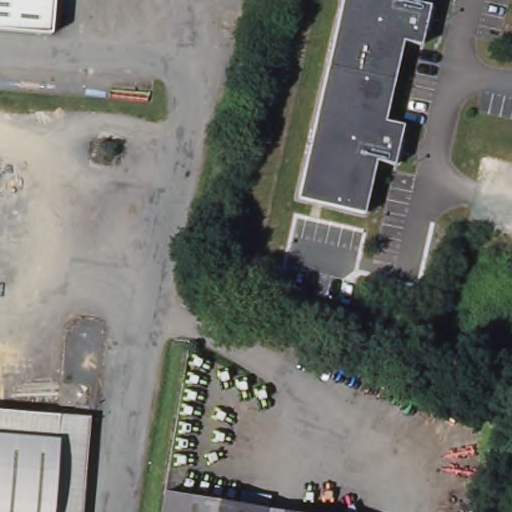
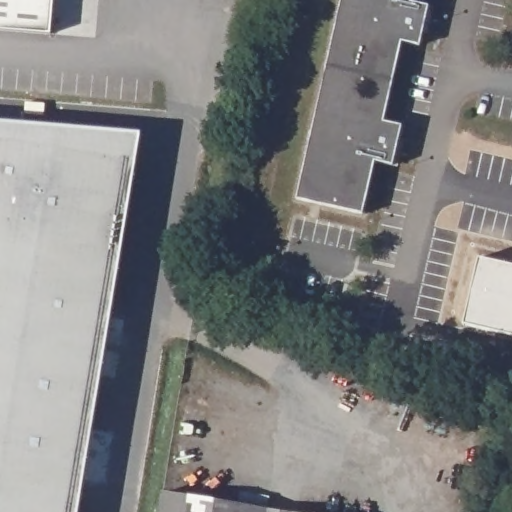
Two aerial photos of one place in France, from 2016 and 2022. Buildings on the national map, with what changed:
unchanged [(0,26),(0,0),(54,0),(51,30),(0,26)]
unchanged [(430,0),(436,2),(427,41),(407,36),(388,117),(406,121),(397,161),(378,157),(365,209),(301,192),(343,0),(430,0)]
new [(128,167),(70,512),(0,512),(0,145),(128,167)]
demolished [(16,432),(27,433),(30,433),(48,435),(43,512),(0,512),(0,431),(16,432)]
unchanged [(164,495),(266,512),(161,512),(164,495)]

